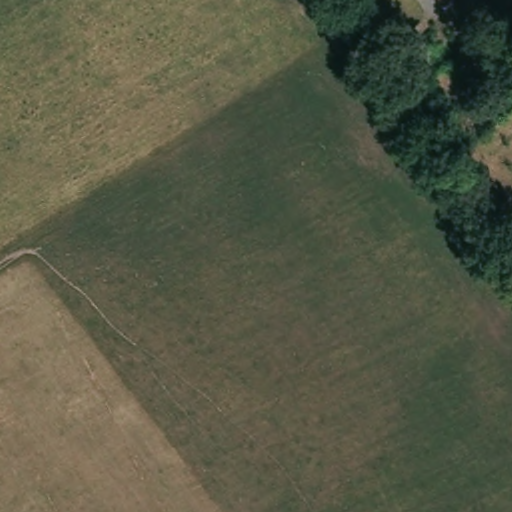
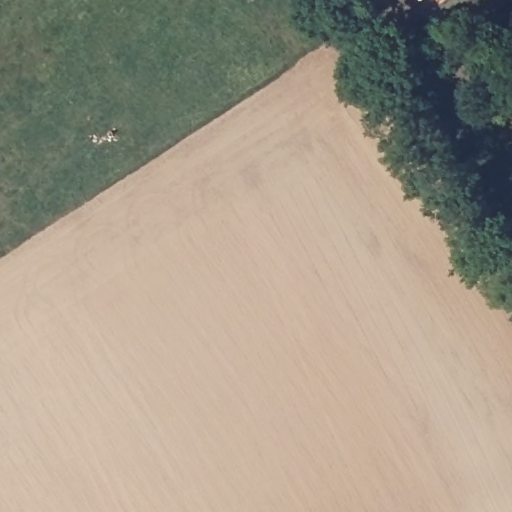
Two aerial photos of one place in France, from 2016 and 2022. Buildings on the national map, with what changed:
unchanged [(437,0),(441,0),(438,2),(437,0)]

